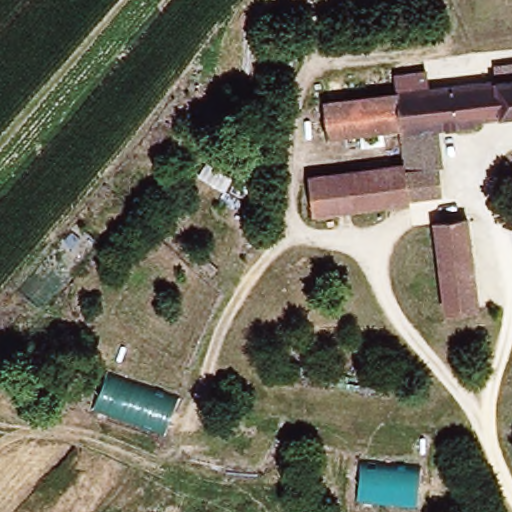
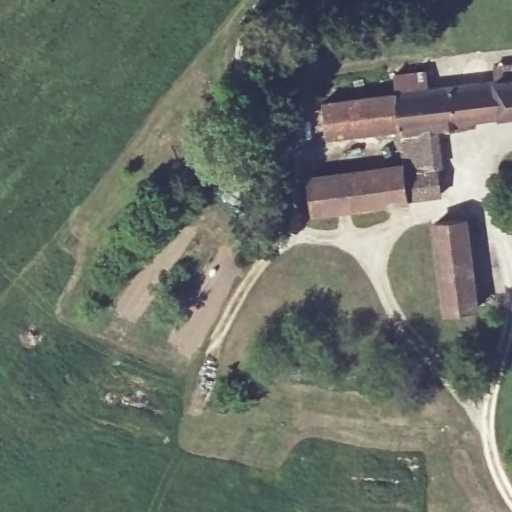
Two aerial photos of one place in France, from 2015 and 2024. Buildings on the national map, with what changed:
unchanged [(481,129),(440,133),(441,198),(408,203),(403,163),(400,127),(322,133),(318,94),(403,87),(403,73),(431,74),(431,87),(501,84),(499,68),(512,67),(512,118),(481,122),(481,129)]
unchanged [(408,203),(311,217),(310,176),(403,163),(408,203)]
unchanged [(444,220),(481,221),(479,304),(442,303),(444,220)]
demolished [(96,412),(110,374),(182,400),(166,436),(96,412)]
unchanged [(360,502),(364,458),(423,466),(419,506),(360,502)]

